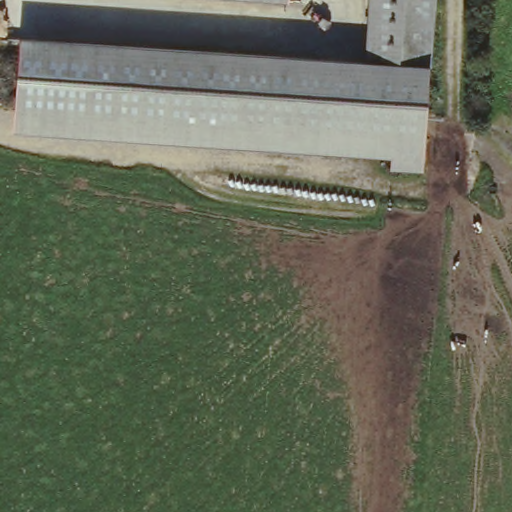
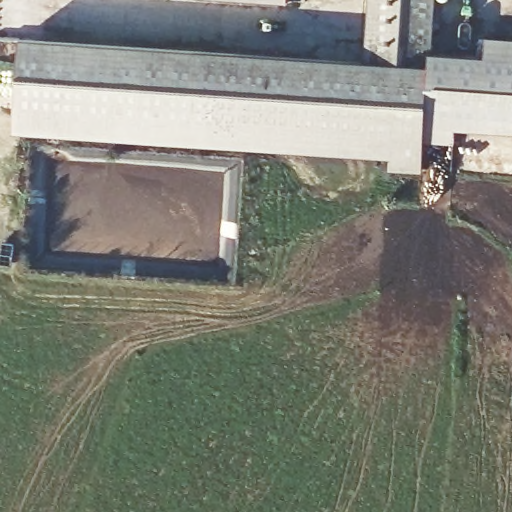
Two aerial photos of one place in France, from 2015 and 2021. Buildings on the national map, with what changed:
unchanged [(360,71),(366,0),(430,0),(423,77),(360,71)]
new [(485,37),(512,39),(512,132),(455,129),(454,145),(417,142),(418,127),(420,110),(423,77),(425,52),(484,56),(485,37)]
unchanged [(418,127),(414,179),(381,176),(385,146),(7,113),(13,41),(211,58),(360,71),(423,77),(420,110),(418,127)]

